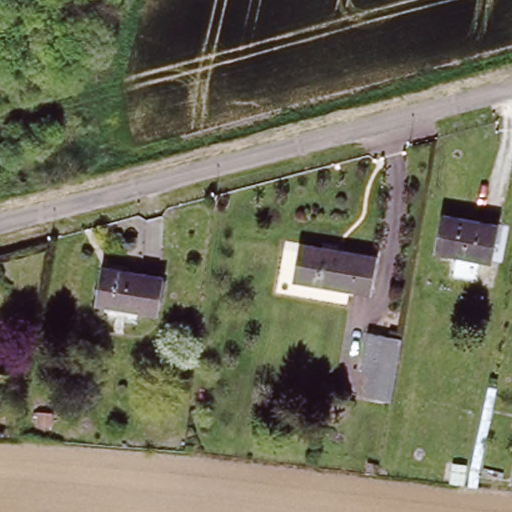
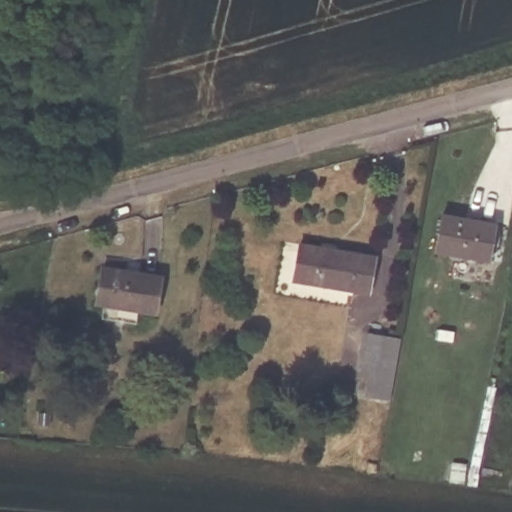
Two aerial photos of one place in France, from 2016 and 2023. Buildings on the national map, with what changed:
unchanged [(441,216),(497,227),(488,262),(435,251),(441,216)]
unchanged [(372,291),(318,286),(297,284),(303,244),(324,246),(377,252),(372,291)]
unchanged [(102,265),(160,273),(155,310),(97,303),(102,265)]
unchanged [(365,333),(400,340),(388,401),(365,397),(367,373),(359,372),(365,333)]
unchanged [(39,412),(52,413),(51,425),(38,424),(39,412)]

